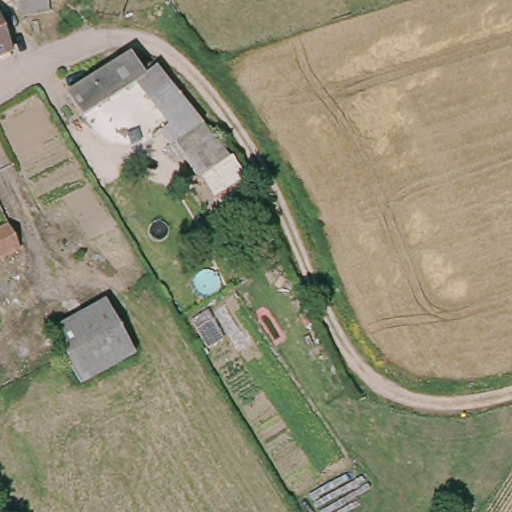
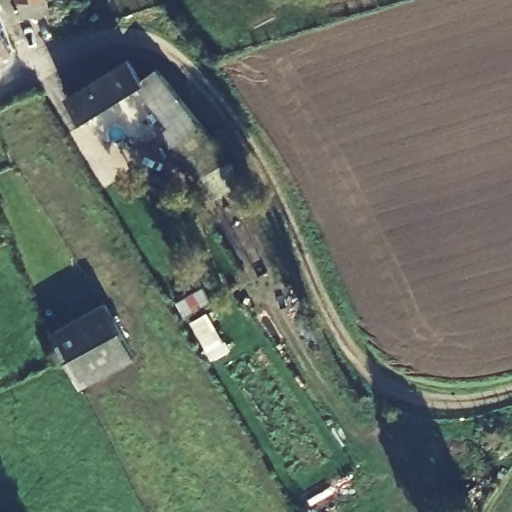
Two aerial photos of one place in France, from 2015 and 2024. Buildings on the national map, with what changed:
unchanged [(17,0),(47,0),(48,11),(20,17),(17,0)]
unchanged [(0,56),(0,18),(12,51),(0,56)]
unchanged [(129,52),(142,72),(146,90),(137,78),(81,112),(67,90),(129,52)]
unchanged [(189,162),(184,153),(177,141),(175,137),(170,140),(160,126),(170,119),(146,90),(142,72),(156,61),(203,121),(213,133),(220,141),(189,162)]
unchanged [(13,238),(20,250),(0,260),(0,229),(7,225),(13,238)]
unchanged [(0,274),(0,270),(2,273),(0,274)]
unchanged [(80,385),(66,358),(51,331),(105,301),(107,304),(134,355),(80,385)]

